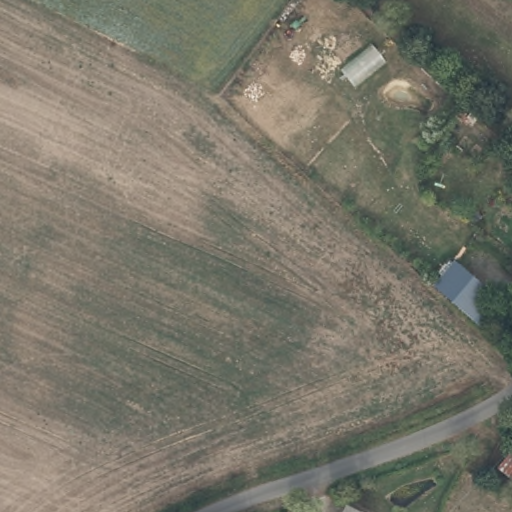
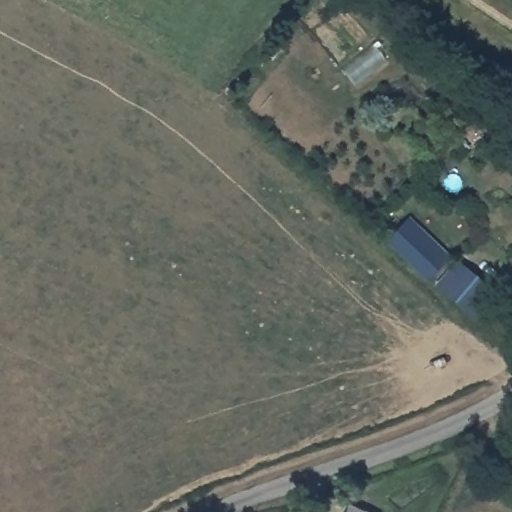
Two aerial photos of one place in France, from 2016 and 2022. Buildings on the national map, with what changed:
new [(427,282),(386,240),(408,217),(448,255),(427,282)]
unchanged [(455,261),(499,298),(479,324),(435,286),(455,261)]
unchanged [(512,453),(512,478),(500,467),(512,453)]
unchanged [(352,504),(367,512),(348,512),(352,504)]

